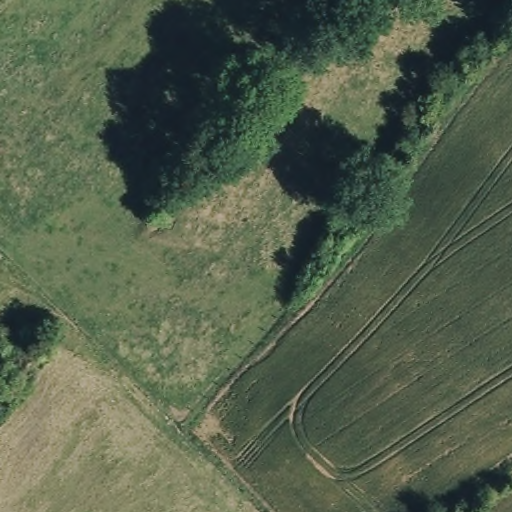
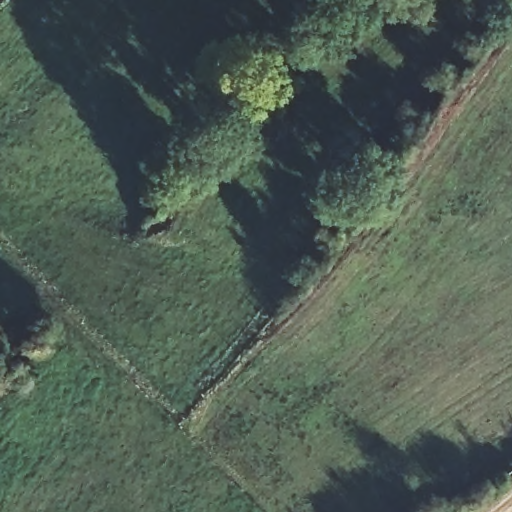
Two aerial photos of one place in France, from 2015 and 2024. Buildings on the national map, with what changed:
unchanged [(230,21),(196,20),(196,0),(231,0),(230,21)]

